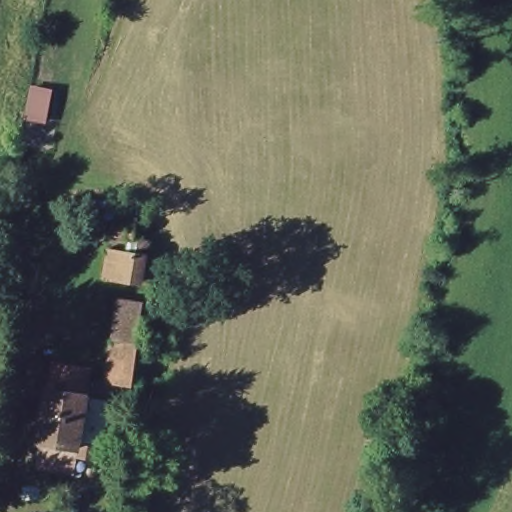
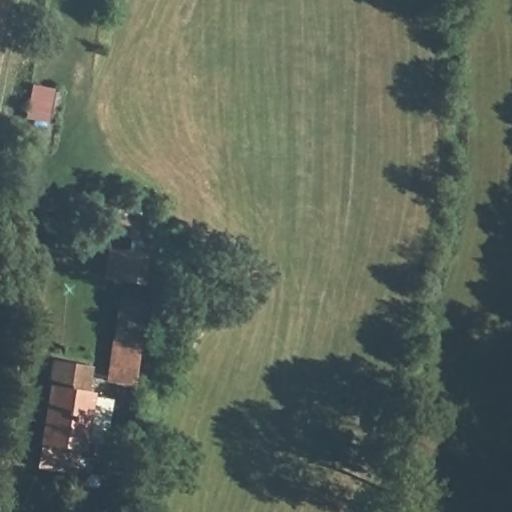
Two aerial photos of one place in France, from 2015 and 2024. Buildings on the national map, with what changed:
unchanged [(27,118),(32,82),(58,86),(47,122),(27,118)]
unchanged [(139,234),(117,232),(115,220),(89,216),(90,195),(139,200),(139,234)]
unchanged [(149,283),(108,278),(112,247),(155,252),(149,283)]
unchanged [(145,298),(135,397),(104,395),(117,295),(145,298)]
unchanged [(106,451),(42,441),(50,385),(55,358),(96,364),(92,396),(112,402),(106,451)]

